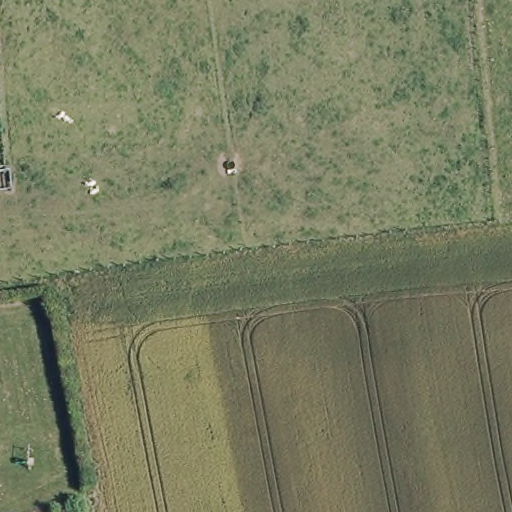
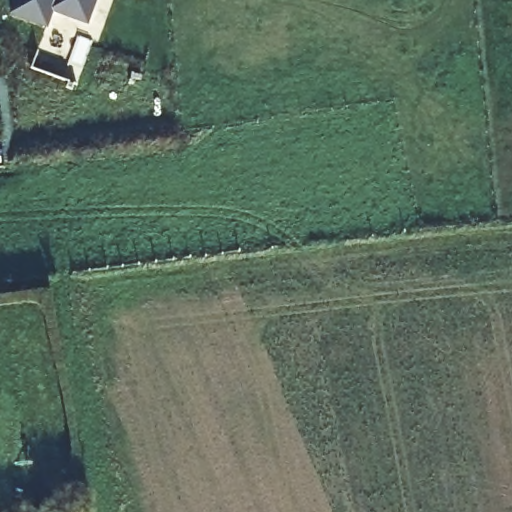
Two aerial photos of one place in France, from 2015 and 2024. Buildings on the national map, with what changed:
new [(47,27),(9,15),(14,0),(97,0),(87,26),(52,12),(47,27)]

